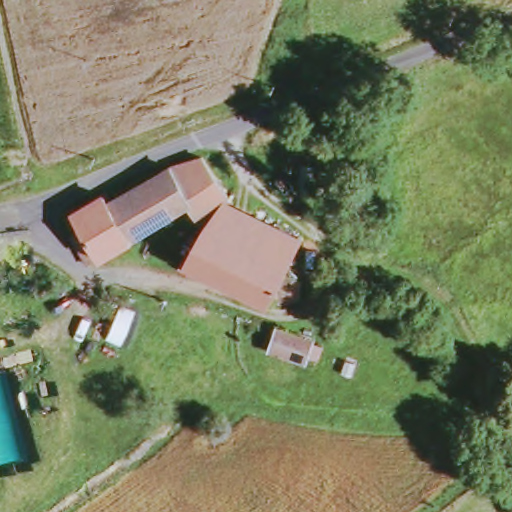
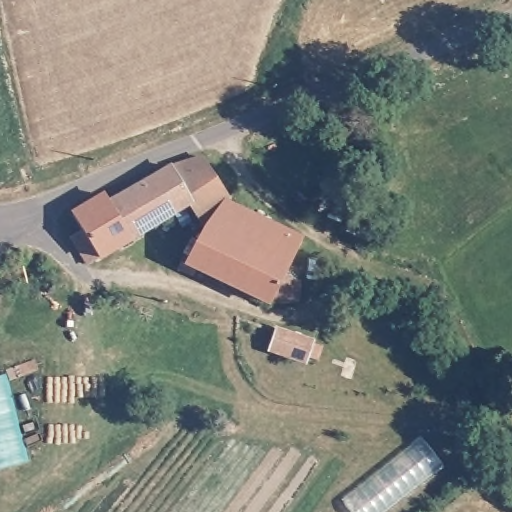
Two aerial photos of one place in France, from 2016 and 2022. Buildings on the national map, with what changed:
unchanged [(205,225),(189,206),(164,169),(198,157),(222,189),(228,197),(223,204),(205,225)]
unchanged [(128,188),(164,169),(189,206),(183,209),(153,226),(128,188)]
unchanged [(79,231),(68,213),(103,193),(107,200),(128,188),(153,226),(85,265),(66,239),(79,231)]
unchanged [(203,228),(205,225),(223,204),(295,241),(284,267),(279,265),(203,228)]
unchanged [(365,239),(347,231),(353,214),(371,220),(365,239)]
unchanged [(283,304),(270,304),(251,299),(182,264),(199,233),(203,228),(279,265),(268,274),(292,286),(292,301),(283,304)]
unchanged [(305,363),(273,353),(279,331),(310,343),(305,363)]
unchanged [(8,376),(28,466),(0,472),(0,378),(8,376)]
new [(421,437),(443,466),(384,512),(353,512),(343,499),(421,437)]

